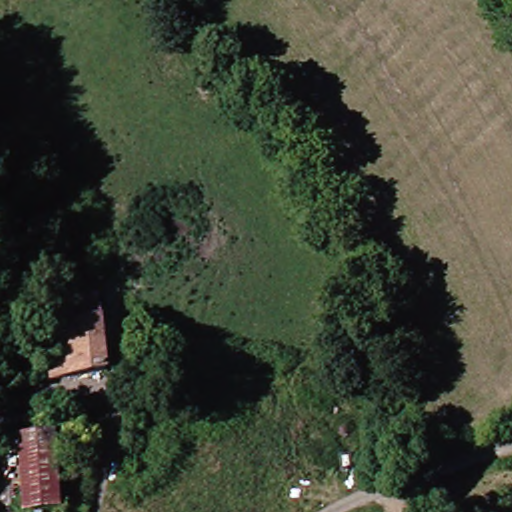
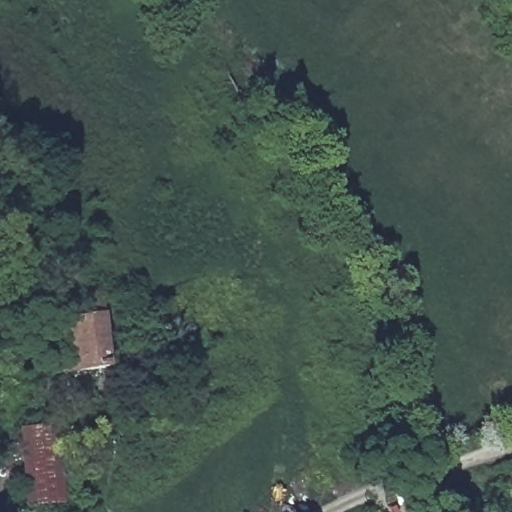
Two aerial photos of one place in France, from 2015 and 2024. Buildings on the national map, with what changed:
unchanged [(1,299),(4,324),(0,324),(0,299),(1,299)]
unchanged [(47,376),(43,326),(66,323),(65,302),(97,299),(99,319),(104,368),(47,376)]
unchanged [(52,508),(16,508),(17,472),(14,471),(12,431),(43,430),(82,431),(81,507),(52,508)]

